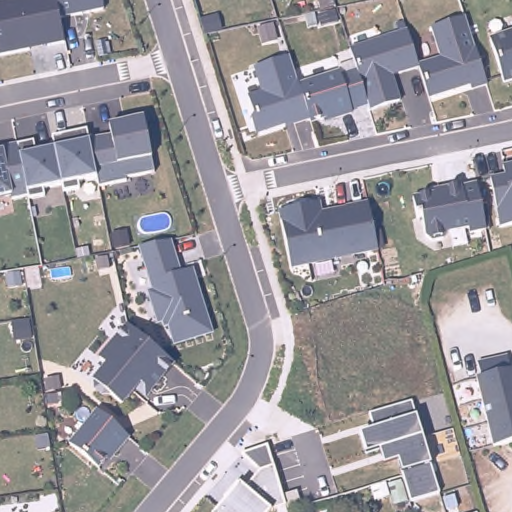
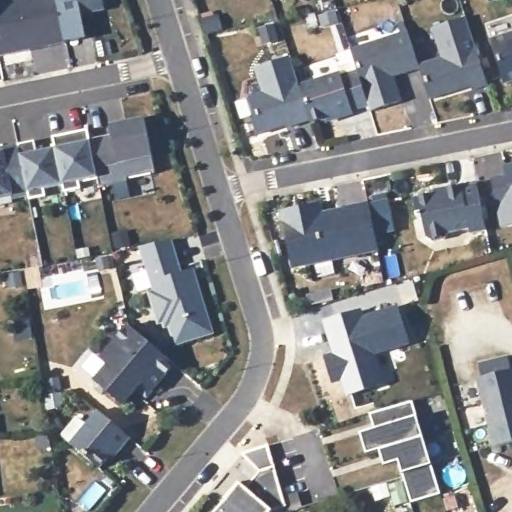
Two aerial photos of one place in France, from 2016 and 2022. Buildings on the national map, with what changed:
unchanged [(56,0),(59,20),(64,43),(0,56),(0,3),(19,0),(56,0)]
unchanged [(59,20),(56,0),(103,0),(105,11),(59,20)]
unchanged [(440,53),(431,23),(464,12),(474,40),(486,79),(471,84),(468,77),(456,81),(458,85),(428,94),(422,74),(418,63),(418,62),(417,61),(440,53)]
unchanged [(402,69),(401,66),(391,69),(399,97),(369,106),(357,67),(349,45),(406,26),(417,61),(418,62),(418,63),(402,69)]
unchanged [(512,33),(512,80),(503,83),(489,40),(512,33)]
unchanged [(369,106),(309,124),(308,122),(257,136),(247,98),(260,94),(253,69),(289,57),(298,86),(357,67),(369,106)]
unchanged [(154,172),(125,178),(125,182),(99,188),(96,178),(79,182),(80,191),(65,193),(64,186),(44,189),(46,198),(28,201),(27,196),(16,145),(35,141),(38,153),(54,150),(50,136),(86,129),(89,143),(110,138),(109,126),(143,118),(154,172)]
unchanged [(11,199),(10,196),(0,198),(0,148),(16,145),(27,196),(11,199)]
unchanged [(504,176),(503,166),(512,164),(512,225),(499,228),(490,179),(504,176)]
unchanged [(443,192),(442,188),(461,185),(461,187),(476,184),(485,231),(469,234),(469,229),(447,233),(443,239),(431,242),(425,238),(421,218),(416,219),(412,198),(443,192)]
unchanged [(318,203),(322,220),(331,218),(336,211),(346,209),(346,208),(368,203),(377,250),(290,268),(279,211),(318,203)]
unchanged [(181,272),(193,268),(213,334),(174,346),(169,328),(163,330),(160,323),(156,325),(147,293),(152,292),(138,248),(169,240),(181,272)]
new [(364,313),(397,304),(409,346),(377,355),(386,384),(347,396),(342,381),(332,384),(323,356),(333,353),(323,320),(363,309),(364,313)]
unchanged [(122,405),(109,394),(101,395),(94,388),(94,381),(107,365),(99,359),(127,326),(173,365),(150,391),(145,397),(135,389),(122,405)]
unchanged [(512,371),(512,444),(497,448),(478,380),(512,371)]
unchanged [(438,492),(409,502),(397,464),(384,467),(379,453),(367,458),(360,434),(373,431),(369,415),(412,402),(438,492)]
unchanged [(129,439),(117,452),(114,450),(98,469),(69,444),(96,411),(129,439)]
unchanged [(274,512),(216,512),(239,484),(245,489),(258,471),(240,454),(269,444),(274,465),(287,508),(274,512)]

